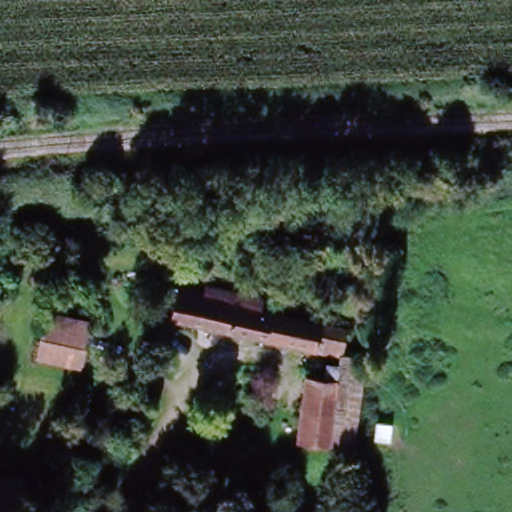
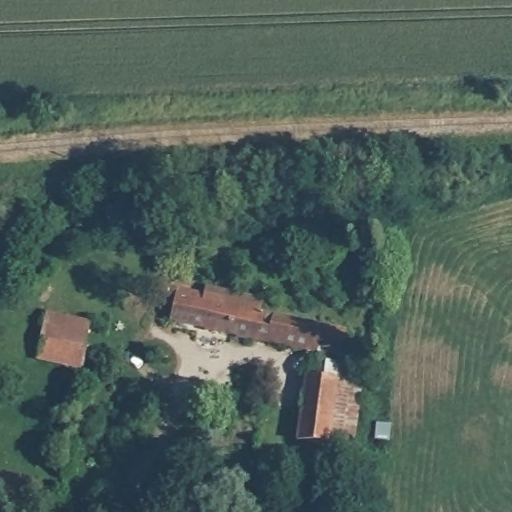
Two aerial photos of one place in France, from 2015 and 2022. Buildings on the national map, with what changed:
unchanged [(261,315),(339,331),(334,354),(188,324),(189,312),(163,307),(168,286),(193,291),(263,305),(261,315)]
unchanged [(36,360),(38,342),(42,319),(58,321),(85,324),(83,349),(80,365),(36,360)]
unchanged [(301,377),(339,378),(341,357),(353,357),(362,357),(358,446),(338,446),(299,444),(301,377)]
unchanged [(19,512),(0,512),(0,474),(23,475),(19,512)]

